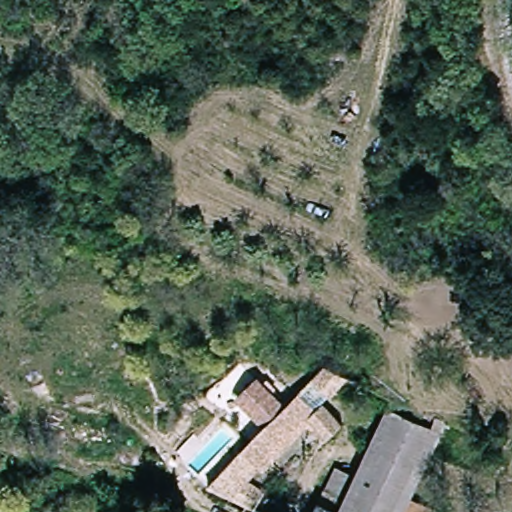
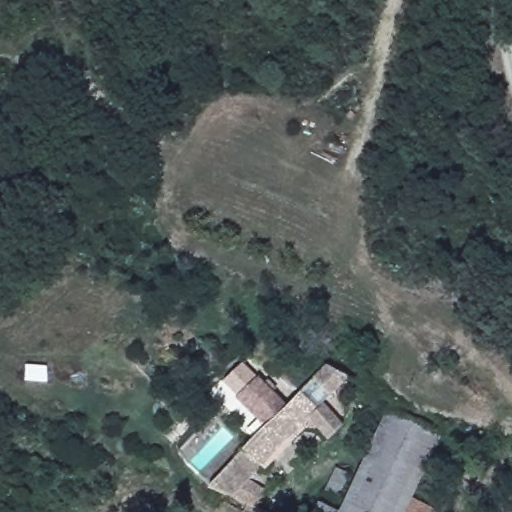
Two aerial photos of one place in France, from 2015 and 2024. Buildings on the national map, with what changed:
unchanged [(334,360),(355,373),(336,396),(312,383),(334,360)]
unchanged [(240,390),(237,387),(254,370),(256,369),(283,398),(279,403),(294,414),(302,409),(325,427),(318,436),(311,444),(294,432),(254,477),(266,490),(257,507),(253,505),(206,480),(265,416),(240,390)]
unchanged [(379,413),(425,440),(402,493),(393,512),(326,512),(360,450),(379,413)]
unchanged [(324,512),(304,512),(307,506),(324,512)]

